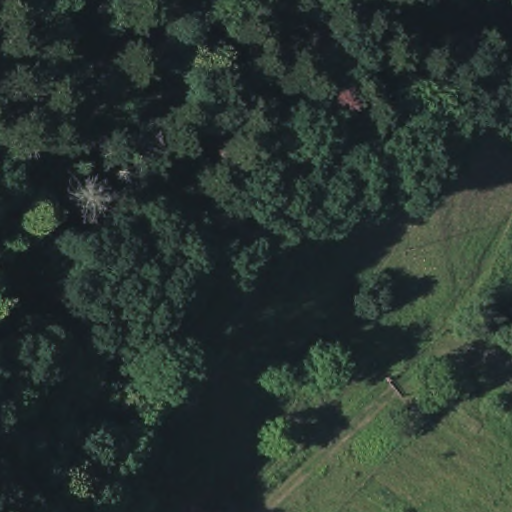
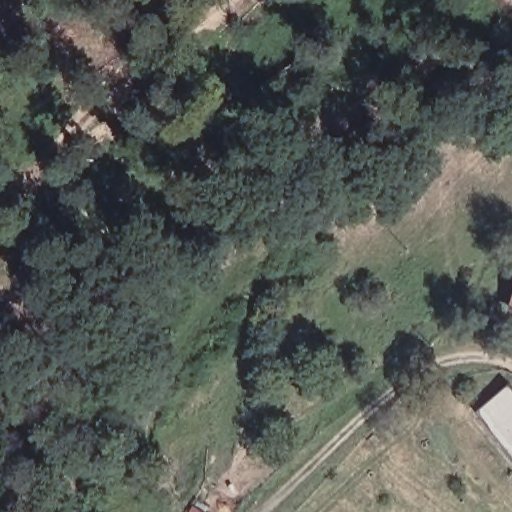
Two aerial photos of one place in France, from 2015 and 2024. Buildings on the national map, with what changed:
unchanged [(207,290),(231,303),(222,316),(227,319),(218,334),(215,331),(207,346),(182,332),(207,290)]
new [(510,384),(512,385),(512,457),(476,413),(510,384)]
unchanged [(210,512),(198,512),(200,508),(210,512)]

